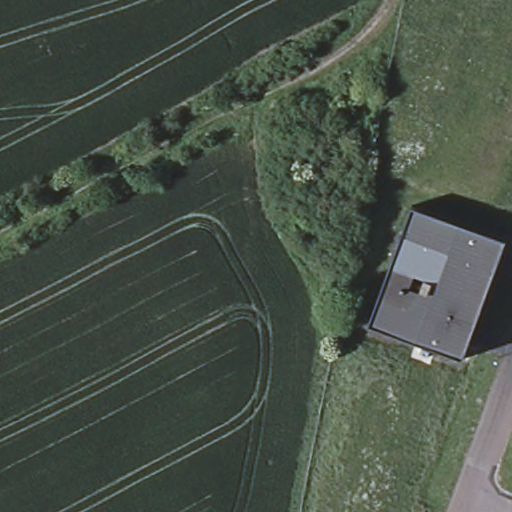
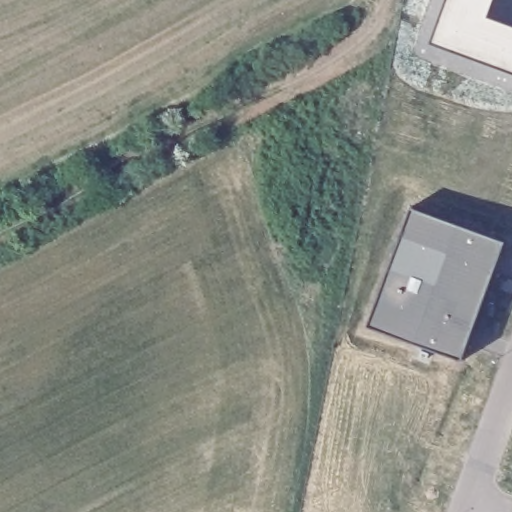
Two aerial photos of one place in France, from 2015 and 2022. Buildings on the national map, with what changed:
new [(512,26),(512,73),(431,44),(447,0),(493,0),(488,16),(512,26)]
unchanged [(366,323),(411,204),(506,239),(461,358),(366,323)]

